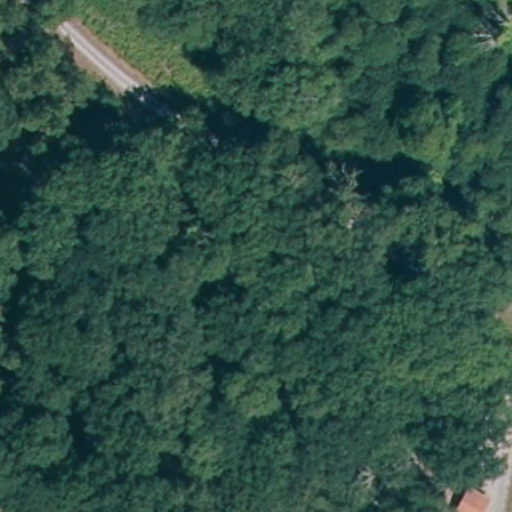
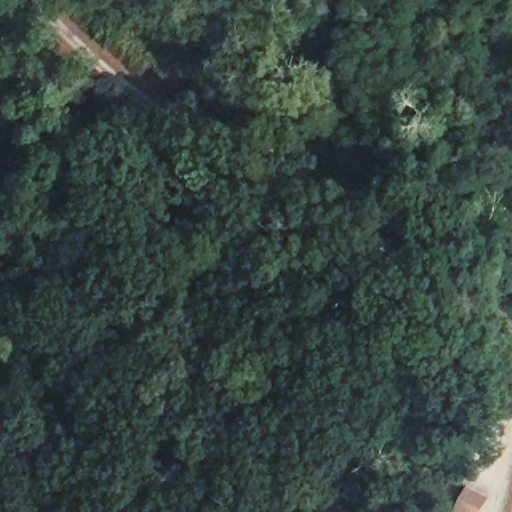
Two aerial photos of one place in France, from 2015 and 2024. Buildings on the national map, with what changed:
unchanged [(480,512),(454,512),(465,491),(486,500),(480,512)]

